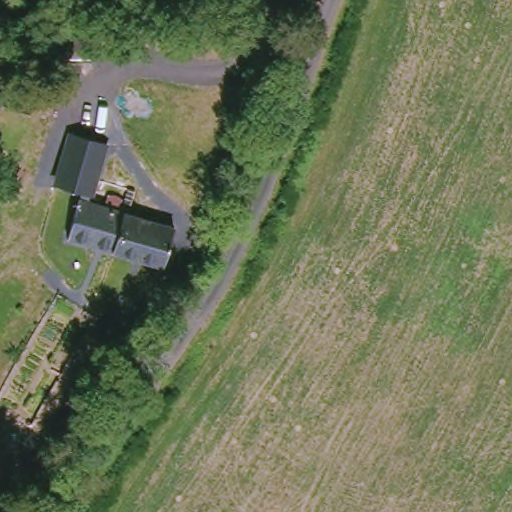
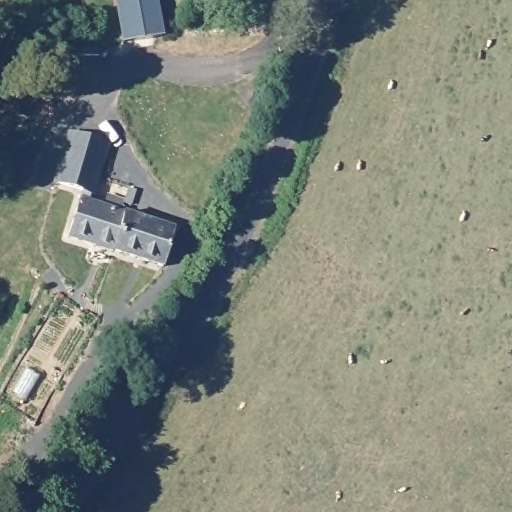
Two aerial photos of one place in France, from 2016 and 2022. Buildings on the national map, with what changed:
new [(158,0),(165,36),(122,44),(114,0),(158,0)]
unchanged [(55,185),(70,132),(112,144),(96,198),(55,185)]
unchanged [(180,268),(85,239),(95,204),(120,212),(124,199),(140,204),(136,217),(191,234),(180,268)]

